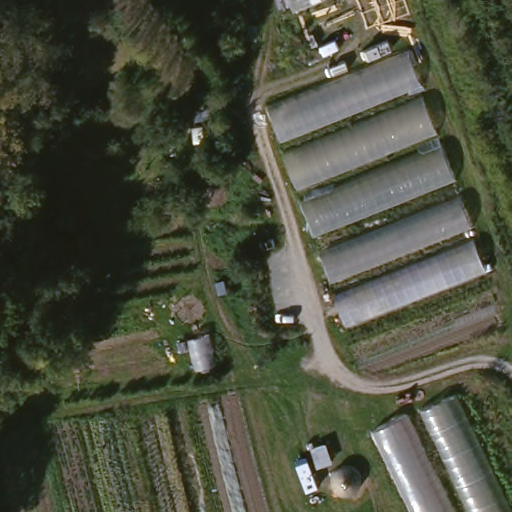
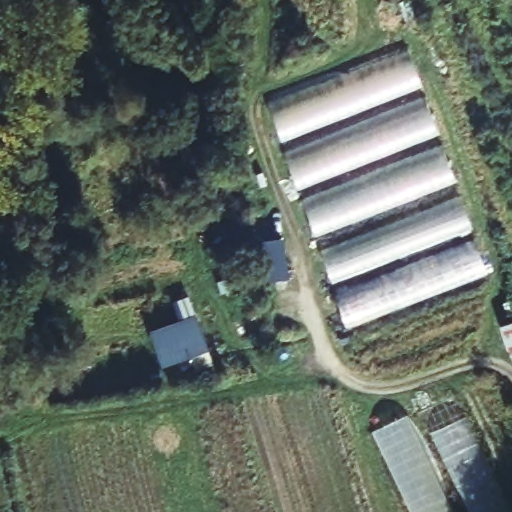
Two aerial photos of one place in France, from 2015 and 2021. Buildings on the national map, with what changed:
unchanged [(400,27),(304,62),(280,0),(391,0),(400,27)]
unchanged [(413,42),(492,270),(347,325),(269,96),(413,42)]
new [(180,319),(173,301),(188,296),(207,349),(160,365),(149,330),(180,319)]
unchanged [(453,393),(509,512),(408,512),(370,431),(453,393)]

